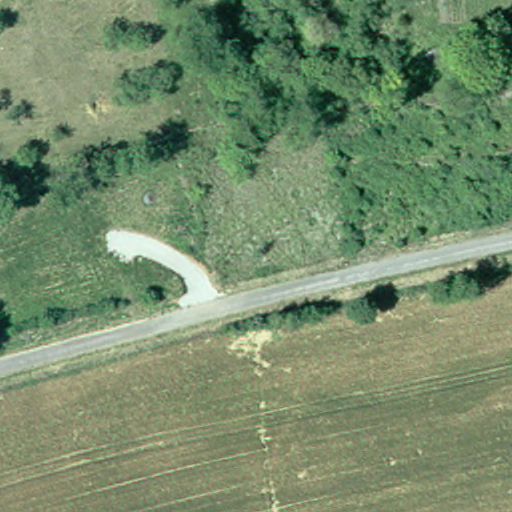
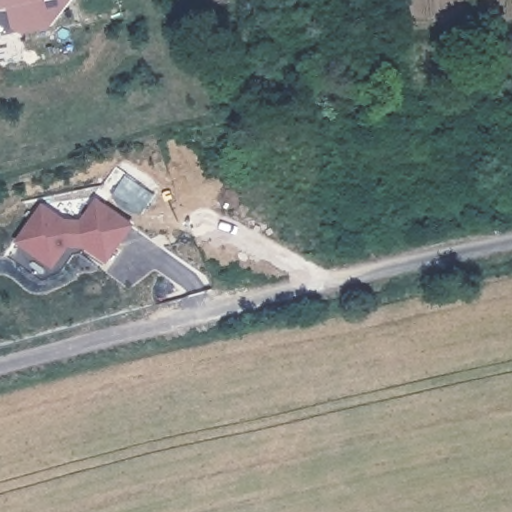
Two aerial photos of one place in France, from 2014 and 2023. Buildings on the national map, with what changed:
new [(27,35),(17,30),(14,9),(5,11),(3,0),(75,0),(52,28),(27,35)]
new [(82,219),(96,197),(135,225),(109,263),(87,247),(69,248),(55,270),(15,242),(42,201),(65,217),(82,219)]

